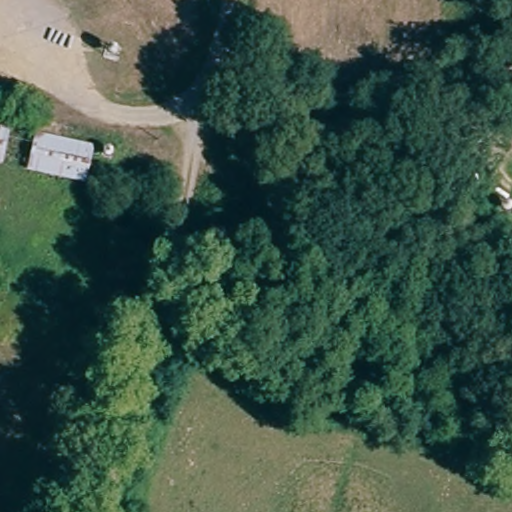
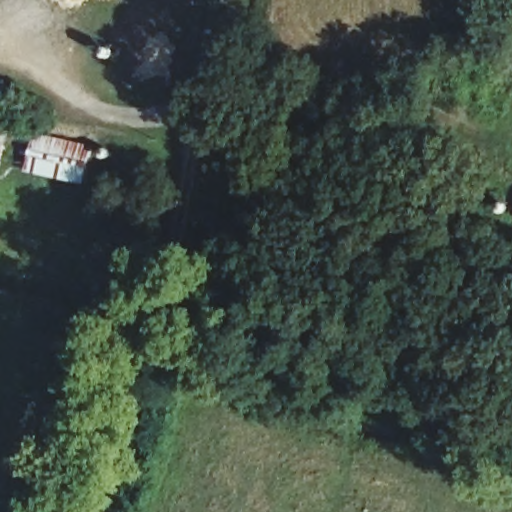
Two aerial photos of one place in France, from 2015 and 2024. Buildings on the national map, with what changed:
unchanged [(1,167),(0,167),(0,125),(11,127),(1,167)]
unchanged [(97,145),(87,183),(26,173),(33,132),(97,145)]

